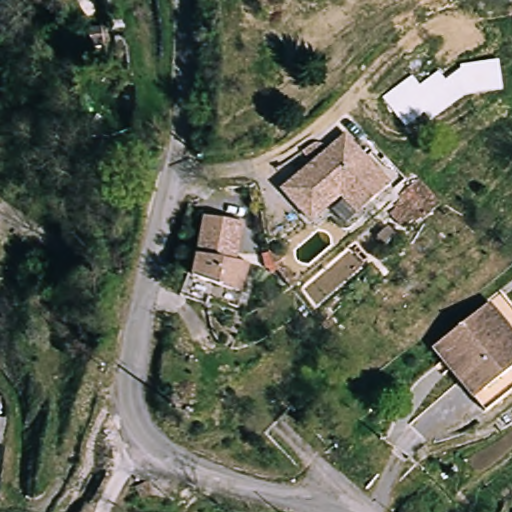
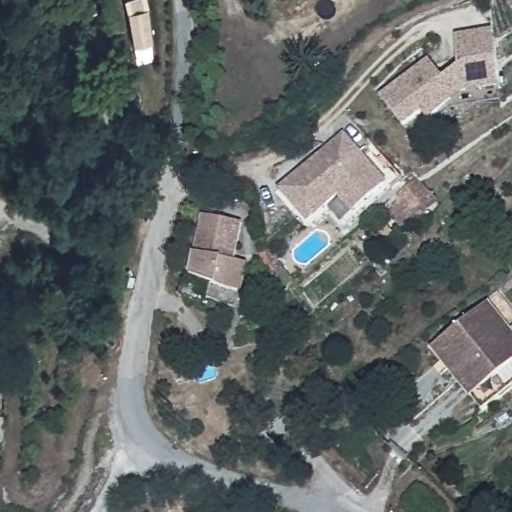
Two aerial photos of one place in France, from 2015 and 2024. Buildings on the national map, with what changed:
new [(144,0),(153,48),(138,50),(127,2),(137,0),(144,0)]
new [(428,60),(443,79),(458,67),(455,35),(493,30),(500,91),(463,96),(430,121),(424,115),(404,129),(380,95),(428,60)]
unchanged [(350,136),(392,189),(346,226),(331,207),(311,222),(284,189),(350,136)]
unchanged [(400,192),(417,179),(442,207),(423,222),(400,192)]
unchanged [(210,302),(181,296),(187,275),(194,276),(209,215),(247,222),(238,262),(251,265),(243,297),(213,291),(210,302)]
unchanged [(492,295),(512,323),(512,348),(480,303),(492,295)]
unchanged [(429,340),(480,303),(512,348),(512,363),(467,395),(429,340)]
unchanged [(420,347),(429,340),(467,395),(512,363),(512,384),(468,415),(420,347)]
unchanged [(3,392),(0,419),(0,392),(3,392)]

